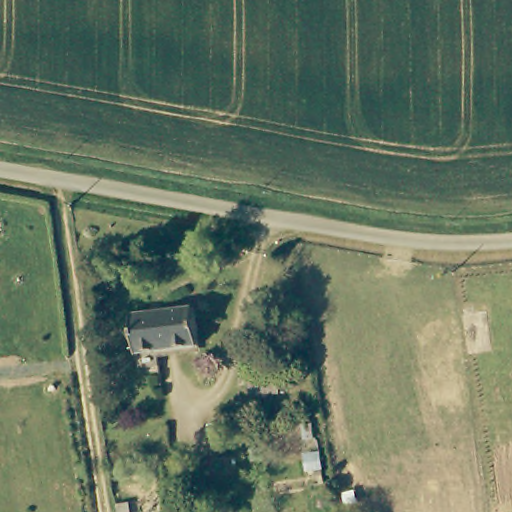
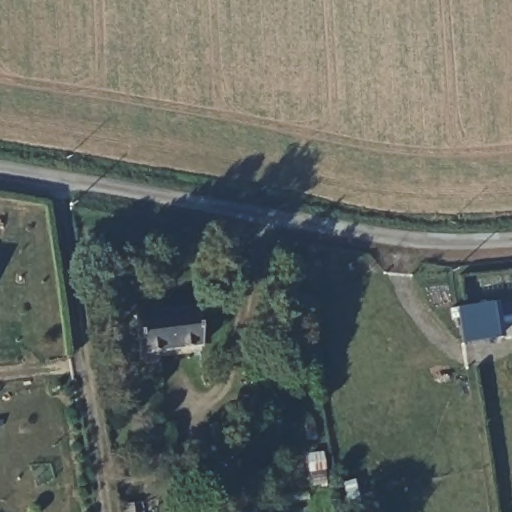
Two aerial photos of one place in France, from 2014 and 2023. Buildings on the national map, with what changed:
new [(460,343),(455,308),(501,301),(505,337),(460,343)]
unchanged [(155,354),(156,370),(137,372),(131,317),(192,310),(197,348),(155,354)]

